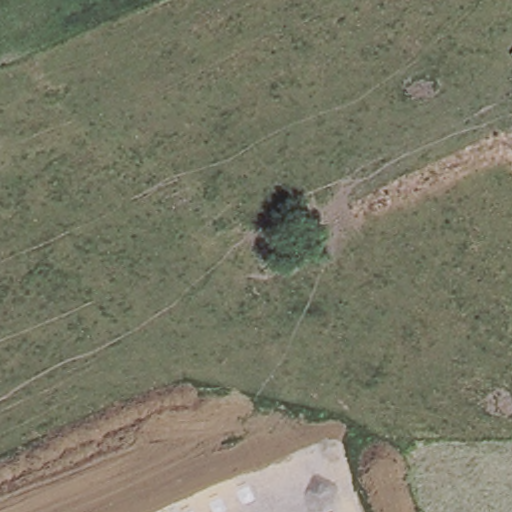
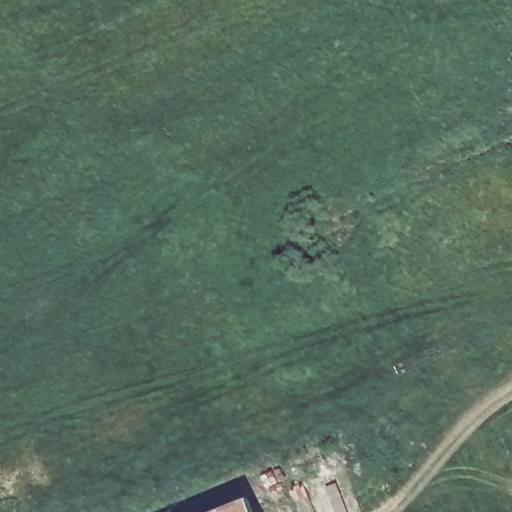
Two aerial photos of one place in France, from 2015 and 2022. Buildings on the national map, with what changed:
new [(255,512),(206,512),(248,495),(255,512)]

